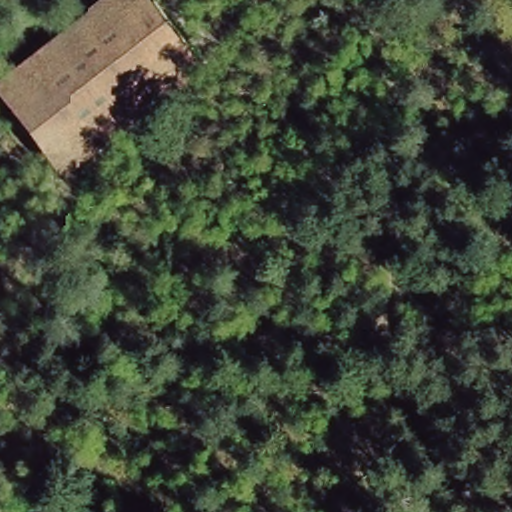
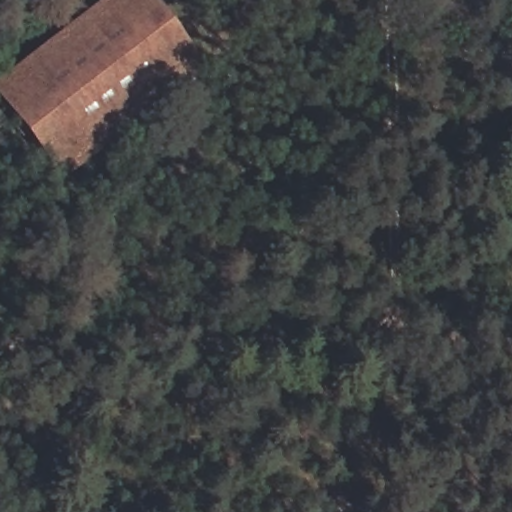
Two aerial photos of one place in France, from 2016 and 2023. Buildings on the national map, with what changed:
unchanged [(0,97),(0,75),(101,0),(154,0),(208,71),(65,183),(0,97)]

